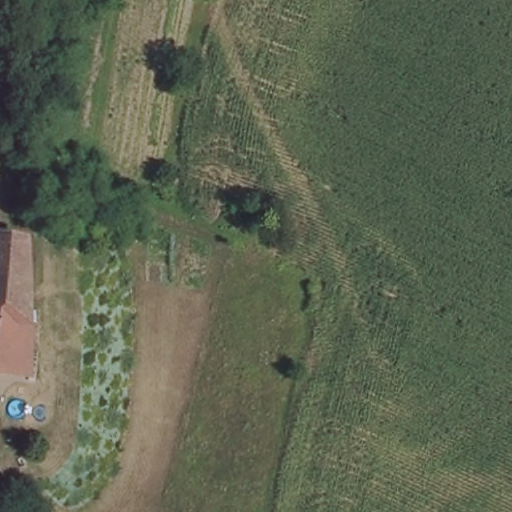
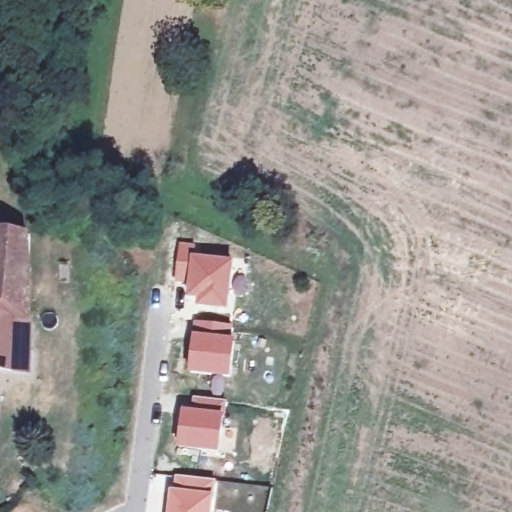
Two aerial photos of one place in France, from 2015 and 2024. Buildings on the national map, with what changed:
unchanged [(33,373),(0,370),(0,237),(32,242),(33,373)]
new [(229,309),(195,306),(195,300),(187,298),(187,282),(173,281),(177,242),(195,244),(194,254),(234,259),(229,309)]
new [(194,319),(232,323),(230,377),(190,373),(194,319)]
new [(183,408),(190,409),(191,396),(226,400),(220,452),(177,447),(183,408)]
new [(165,476),(161,512),(145,512),(150,475),(165,476)]
new [(215,480),(211,512),(167,512),(174,476),(215,480)]

